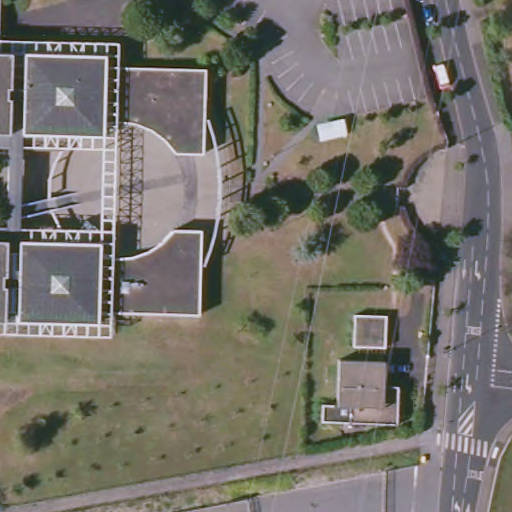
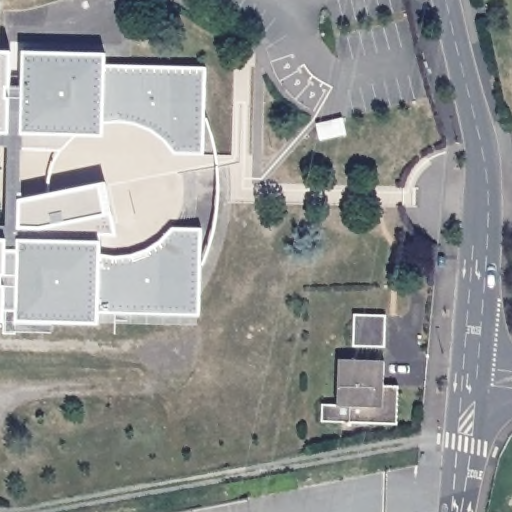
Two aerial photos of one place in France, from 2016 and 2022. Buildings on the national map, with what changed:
unchanged [(152,249),(165,237),(172,228),(200,230),(199,311),(111,307),(111,338),(0,336),(0,228),(6,228),(6,147),(0,146),(0,39),(122,42),(120,63),(205,69),(204,154),(175,153),(159,134),(142,122),(124,115),(117,256),(132,256),(152,249)]
unchanged [(390,315),(389,346),(357,345),(358,314),(390,315)]
unchanged [(385,375),(379,375),(378,383),(400,383),(399,422),(322,420),(322,403),(338,403),(339,358),(386,359),(385,375)]

